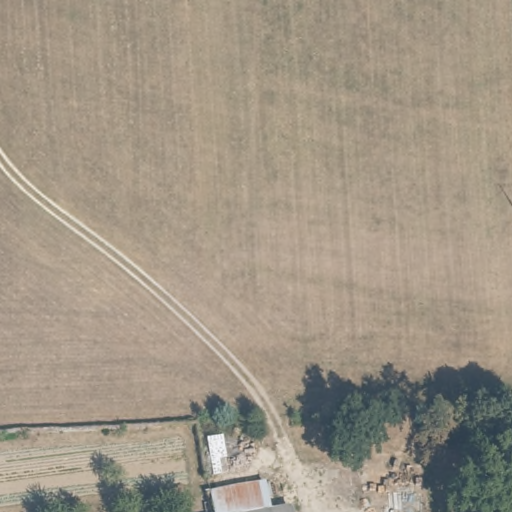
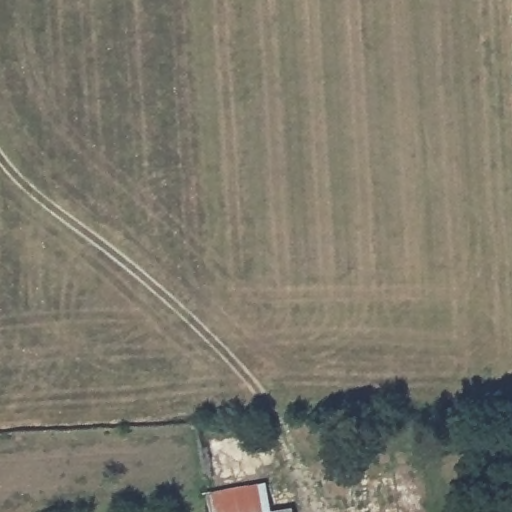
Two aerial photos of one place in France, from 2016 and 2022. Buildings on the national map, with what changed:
unchanged [(260,492),(263,512),(204,512),(203,502),(260,492)]
unchanged [(292,512),(283,512),(292,510),(292,512)]

